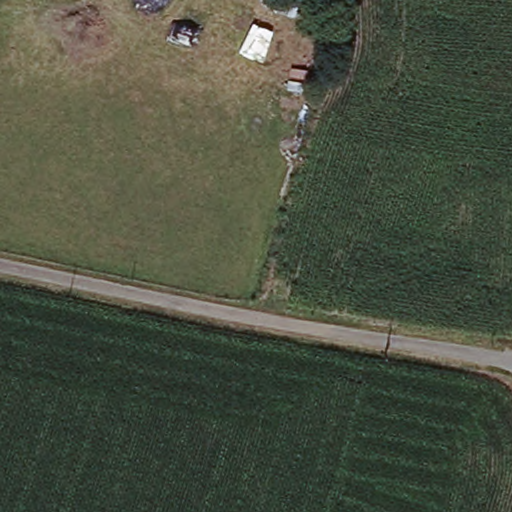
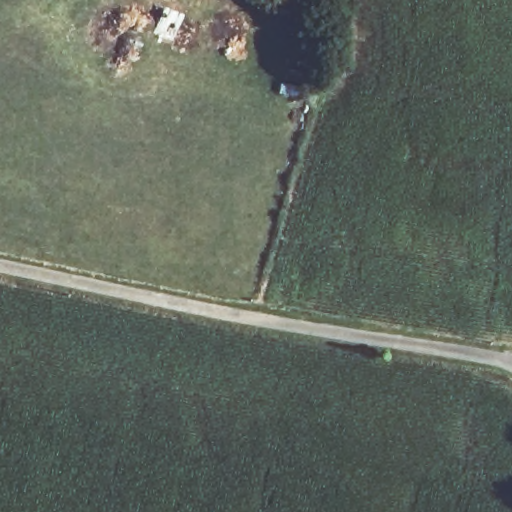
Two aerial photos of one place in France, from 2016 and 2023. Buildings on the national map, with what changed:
[]

